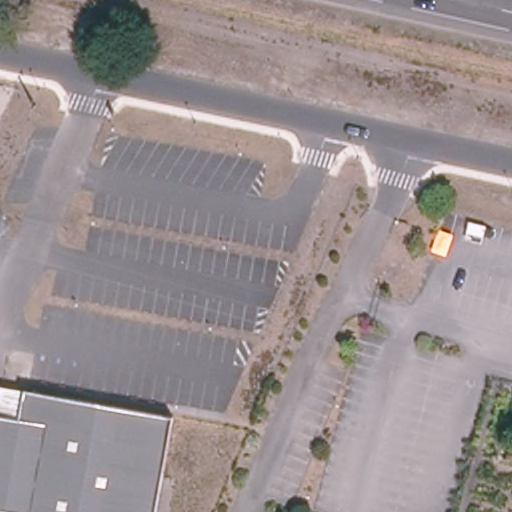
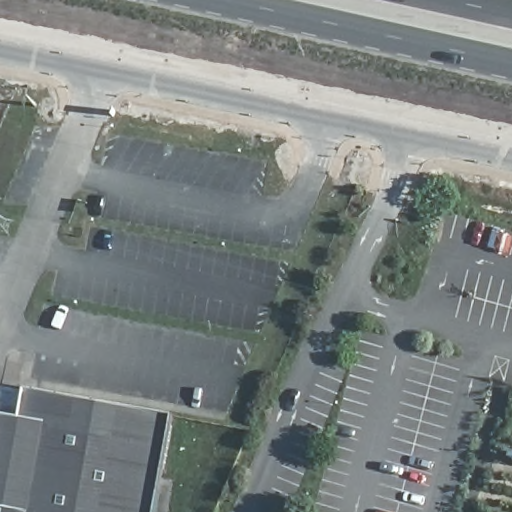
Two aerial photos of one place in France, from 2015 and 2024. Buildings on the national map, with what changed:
unchanged [(0,512),(0,390),(1,385),(173,417),(156,512),(0,512)]

